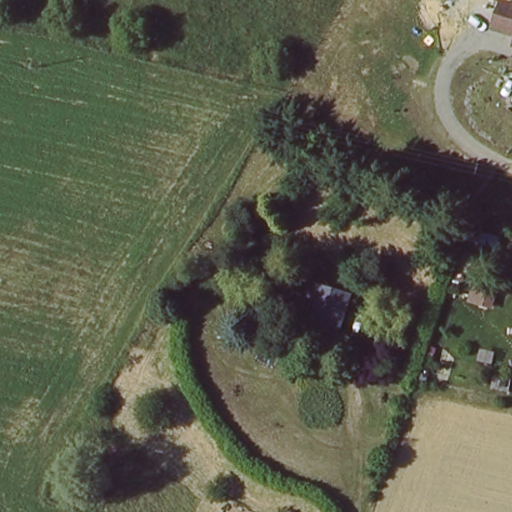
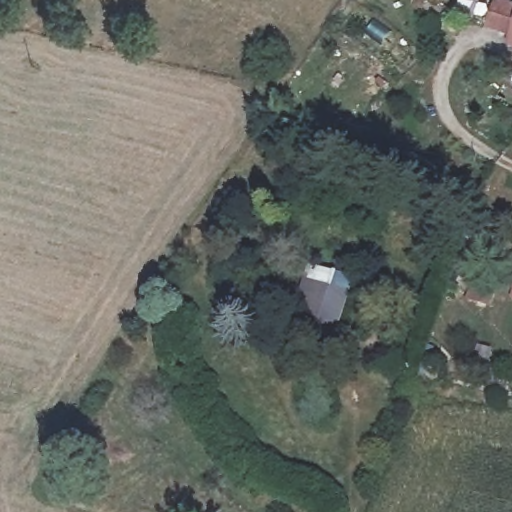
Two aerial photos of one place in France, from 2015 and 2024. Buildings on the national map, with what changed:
unchanged [(497,35),(505,10),(512,12),(512,38),(497,35)]
unchanged [(343,301),(332,336),(296,325),(307,290),(343,301)]
unchanged [(388,321),(383,344),(372,342),(377,319),(388,321)]

